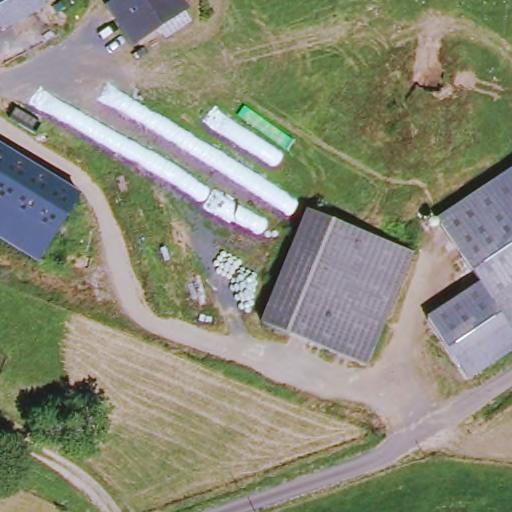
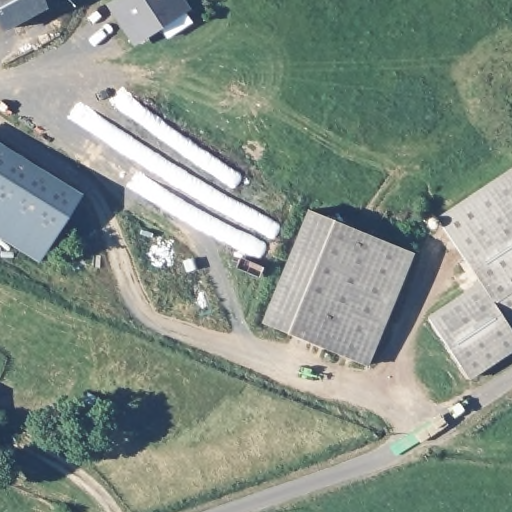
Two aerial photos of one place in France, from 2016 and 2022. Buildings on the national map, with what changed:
unchanged [(2,30),(0,26),(0,0),(41,0),(44,6),(2,30)]
unchanged [(113,0),(172,0),(176,7),(130,38),(108,3),(113,0)]
unchanged [(35,261),(0,239),(0,148),(76,194),(35,261)]
unchanged [(512,319),(506,323),(512,333),(512,349),(469,378),(429,319),(481,284),(438,219),(512,170),(512,319)]
unchanged [(309,210),(413,253),(366,366),(263,324),(309,210)]

